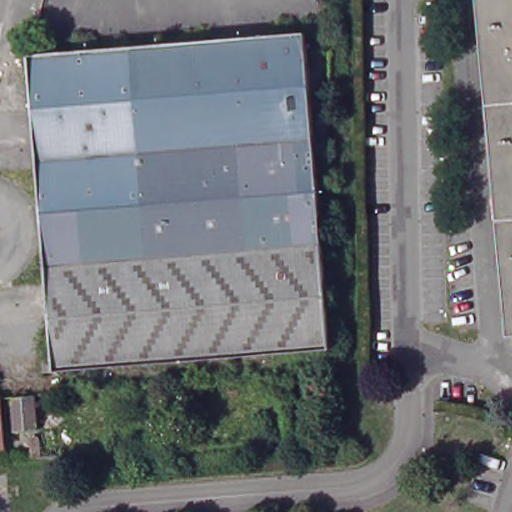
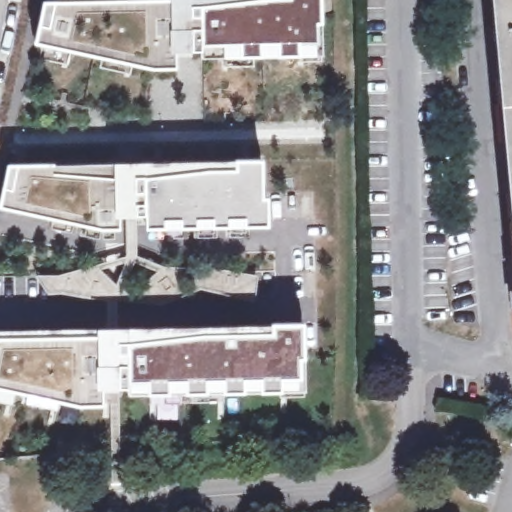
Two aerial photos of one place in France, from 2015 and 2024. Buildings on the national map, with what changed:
new [(74,0),(319,0),(320,22),(314,23),(315,39),(297,40),(297,54),(278,54),(278,40),(258,41),(258,54),(240,55),(240,43),(203,44),(203,49),(173,51),(173,65),(148,65),(34,43),(42,0),(74,0)]
unchanged [(512,197),(495,0),(512,0),(512,197)]
demolished [(308,31),(333,347),(46,370),(45,354),(55,353),(32,53),(308,31)]
new [(110,336),(110,299),(87,300),(64,296),(50,297),(35,277),(63,275),(128,256),(128,213),(122,213),(122,229),(104,229),(2,206),(0,206),(0,201),(8,165),(264,161),(265,198),(270,198),(270,227),(148,229),(147,212),(137,213),(137,256),(163,267),(215,269),(233,272),(257,277),(254,295),(229,295),(200,290),(161,303),(137,302),(119,300),(120,336),(278,334),(278,326),(303,326),(304,362),(298,362),(299,381),(300,393),(280,394),(222,394),(150,396),(102,396),(103,404),(80,406),(60,401),(30,394),(0,388),(0,338),(110,336)]
demolished [(34,425),(12,427),(10,397),(32,394),(34,425)]
demolished [(1,457),(0,458),(0,446),(1,457)]

